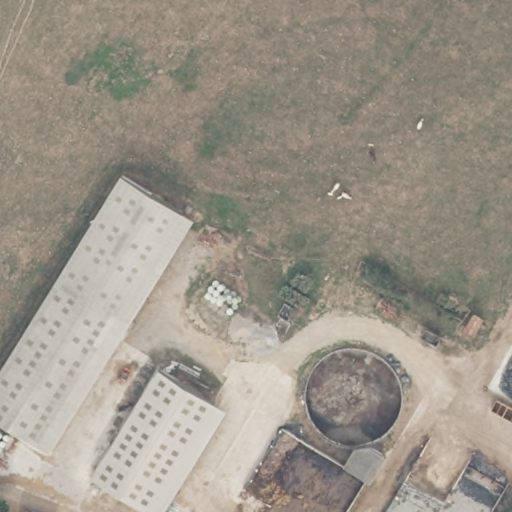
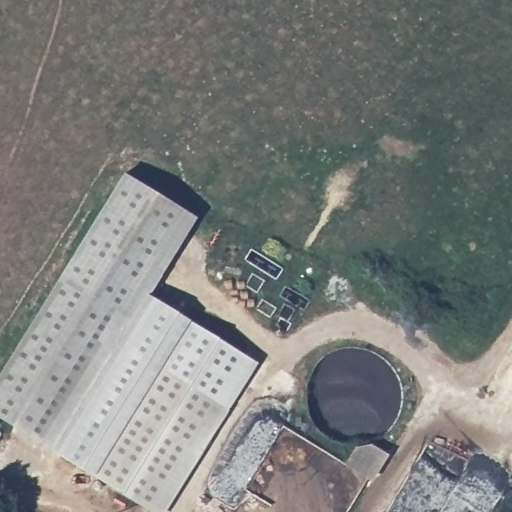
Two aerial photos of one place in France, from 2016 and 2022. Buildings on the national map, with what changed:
unchanged [(122,171),(194,214),(128,322),(57,278),(122,171)]
unchanged [(0,419),(0,372),(57,278),(128,322),(50,450),(0,419)]
new [(128,322),(146,292),(257,361),(228,408),(160,366),(93,476),(50,450),(128,322)]
unchanged [(228,408),(165,512),(150,512),(93,476),(160,366),(228,408)]
new [(355,445),(370,442),(387,454),(371,480),(344,463),(355,445)]

